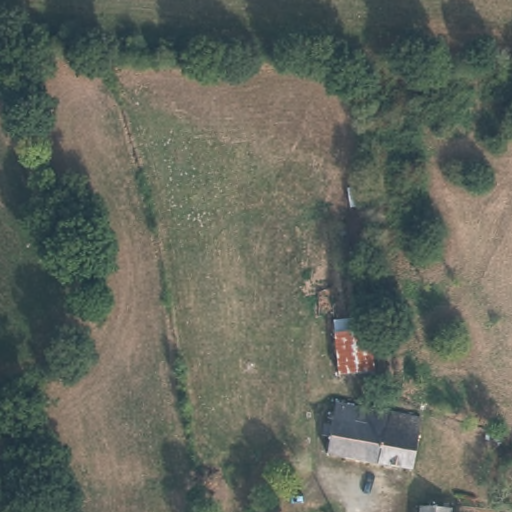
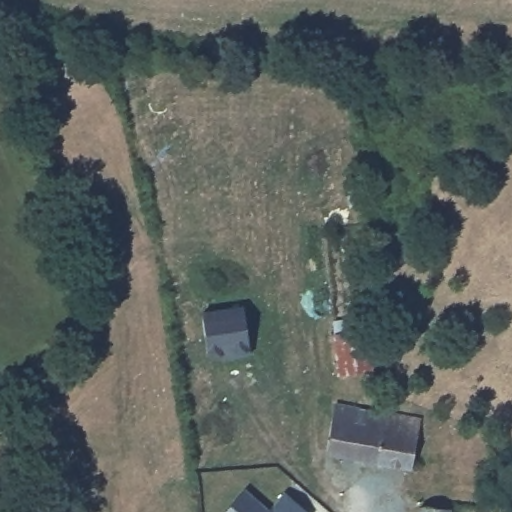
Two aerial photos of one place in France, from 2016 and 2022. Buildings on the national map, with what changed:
new [(214,355),(207,356),(201,312),(243,306),(249,355),(215,360),(214,355)]
unchanged [(363,330),(370,330),(372,372),(338,375),(333,320),(361,317),(363,330)]
unchanged [(331,430),(319,428),(324,401),(335,403),(336,395),(398,408),(418,413),(411,467),(328,448),(331,430)]
new [(272,505),(282,492),(306,512),(223,512),(244,488),(268,510),(272,505)]
unchanged [(418,512),(417,501),(452,502),(452,512),(418,512)]
unchanged [(503,512),(503,510),(512,511),(512,512),(503,512)]

